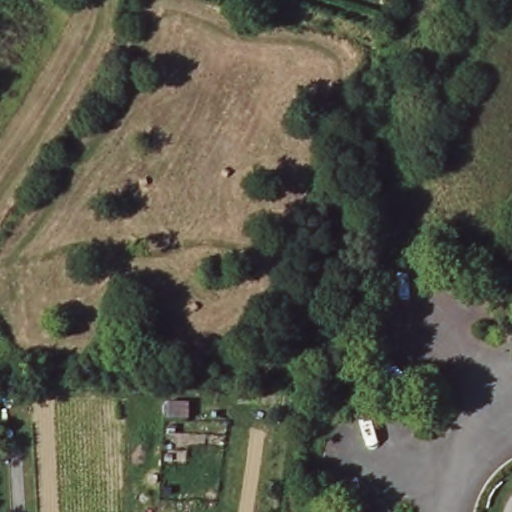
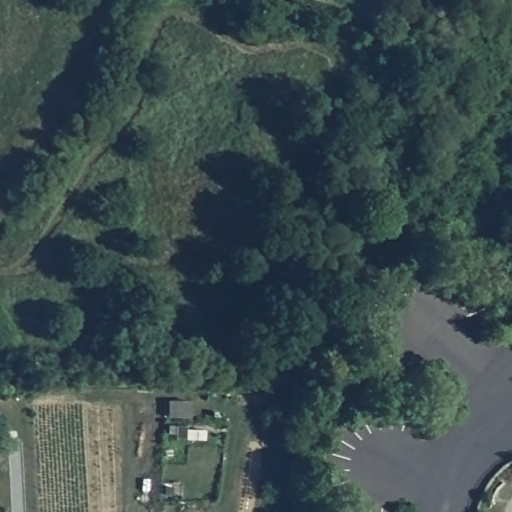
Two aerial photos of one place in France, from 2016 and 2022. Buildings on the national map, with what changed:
[]

